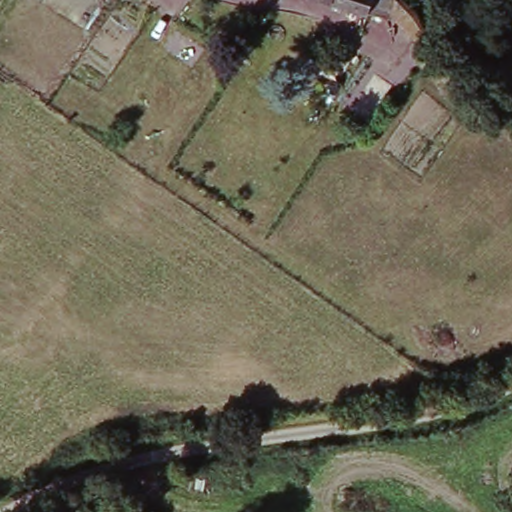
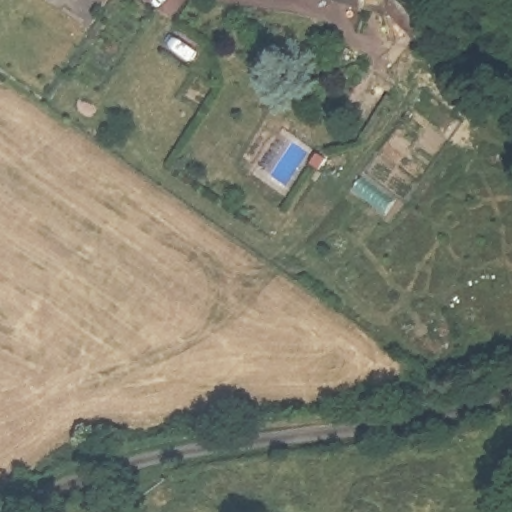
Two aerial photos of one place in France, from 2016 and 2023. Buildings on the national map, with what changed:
unchanged [(374,8),(341,0),(376,0),(374,8)]

